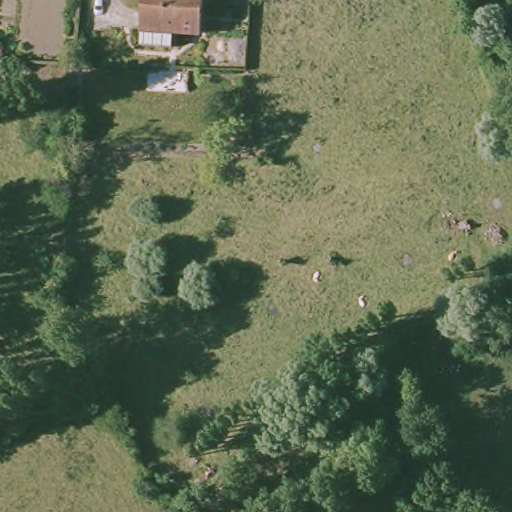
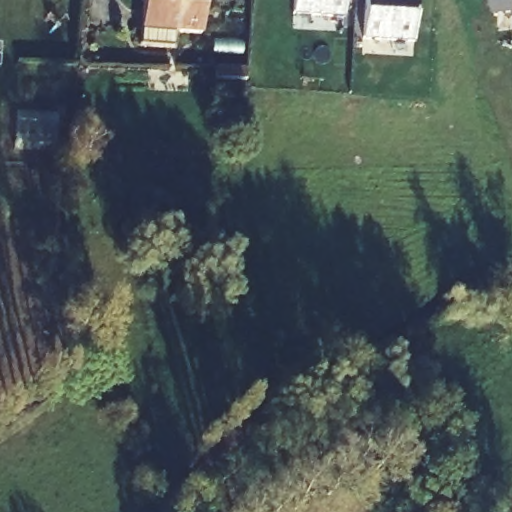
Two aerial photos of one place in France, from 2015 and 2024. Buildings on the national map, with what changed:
unchanged [(174,32),(172,48),(140,45),(143,0),(204,0),(201,34),(174,32)]
new [(345,0),(344,18),(294,14),(294,0),(345,0)]
new [(363,39),(365,0),(416,0),(414,43),(363,39)]
new [(492,0),(512,0),(512,4),(492,7),(492,0)]

